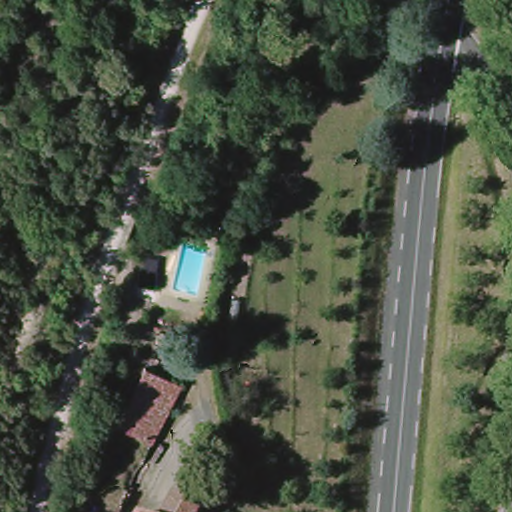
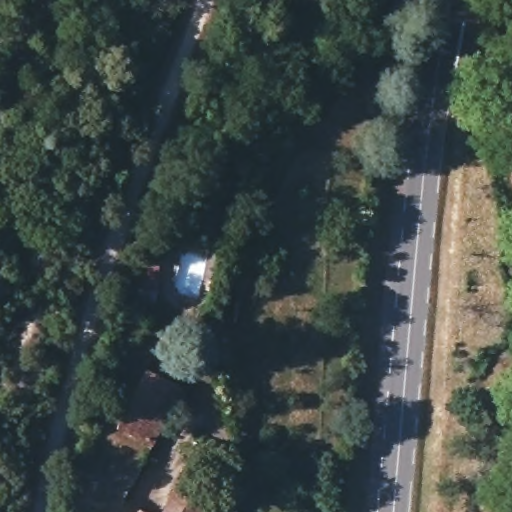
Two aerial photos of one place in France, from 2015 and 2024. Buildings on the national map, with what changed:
unchanged [(122,429),(150,373),(185,394),(155,448),(122,429)]
unchanged [(174,488),(202,503),(199,512),(161,512),(174,488)]
unchanged [(139,506),(154,512),(136,512),(139,506)]

